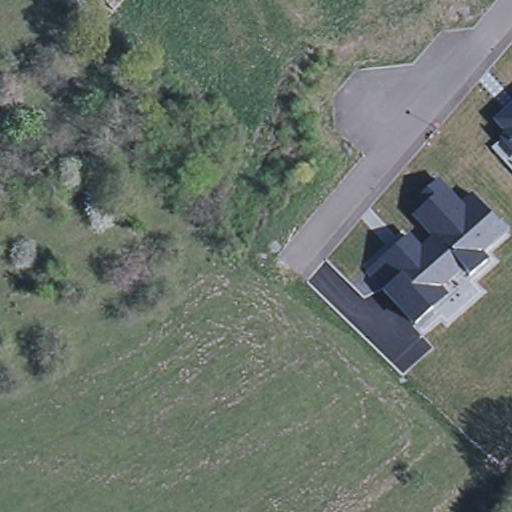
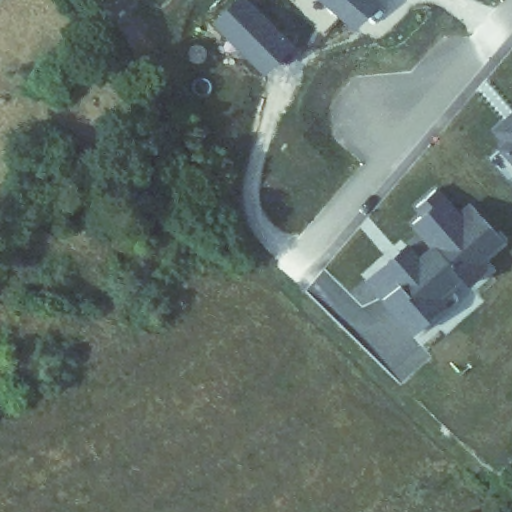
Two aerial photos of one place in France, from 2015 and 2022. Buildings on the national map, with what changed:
new [(293,43),(263,73),(210,22),(233,0),(249,0),(293,43)]
new [(379,1),(353,30),(318,0),(377,0),(379,1)]
unchanged [(507,177),(489,157),(506,142),(494,129),(505,120),(512,114),(512,175),(511,174),(507,177)]
unchanged [(458,296),(456,302),(433,322),(429,318),(414,332),(368,280),(407,246),(419,259),(433,246),(413,222),(423,213),(416,205),(435,188),(458,215),(471,204),(502,238),(476,260),(484,270),(468,284),(464,281),(453,291),(458,296)]

